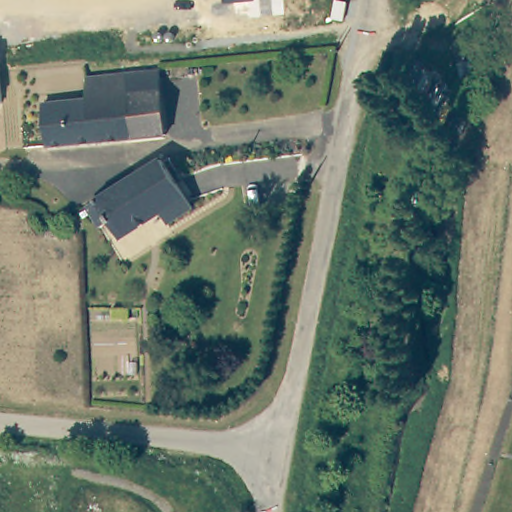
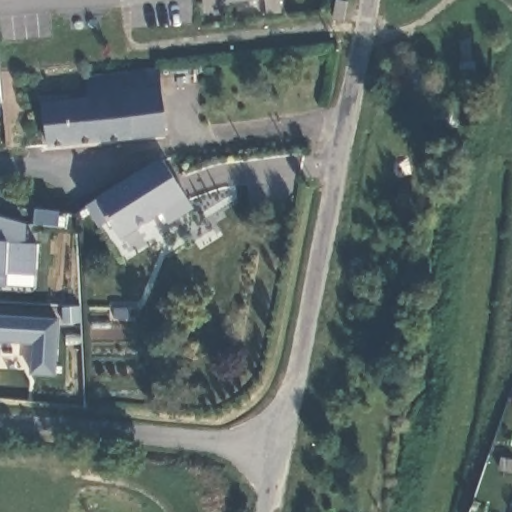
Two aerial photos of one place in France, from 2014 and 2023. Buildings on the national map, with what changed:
unchanged [(254,1),(223,3),(223,0),(255,0),(254,1)]
unchanged [(167,136),(32,149),(29,121),(45,118),(44,107),(85,102),(85,80),(162,70),(167,136)]
unchanged [(199,206),(172,221),(167,212),(126,235),(119,224),(105,231),(90,207),(170,159),(199,206)]
new [(25,243),(37,244),(35,274),(7,274),(5,286),(0,286),(0,216),(26,224),(25,243)]
new [(55,374),(30,373),(33,344),(0,342),(0,315),(59,318),(55,374)]

